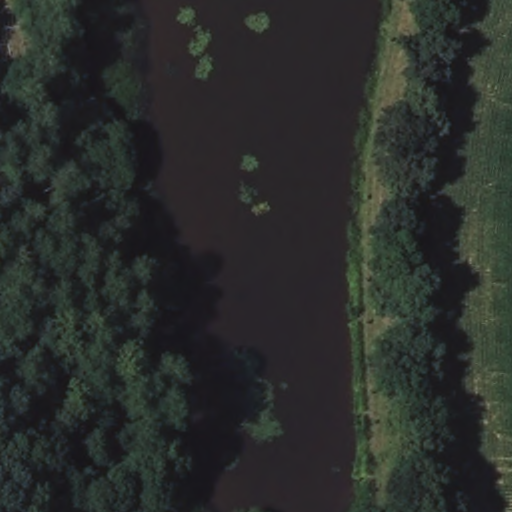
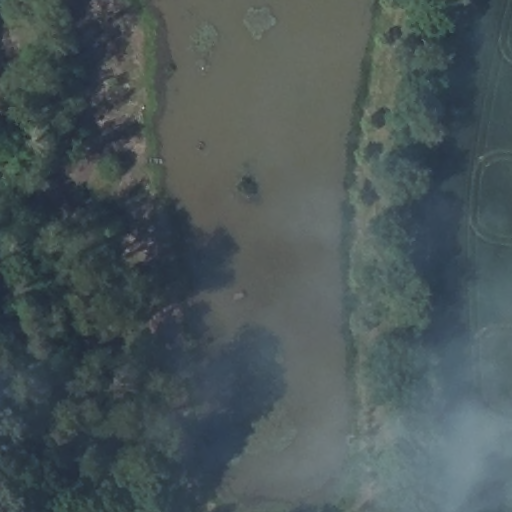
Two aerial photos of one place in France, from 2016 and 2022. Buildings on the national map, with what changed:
[]

